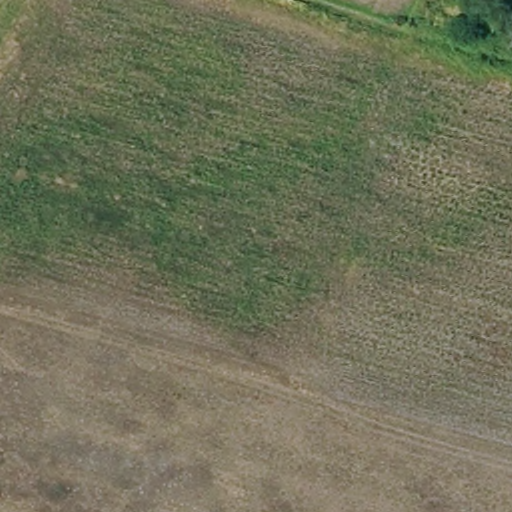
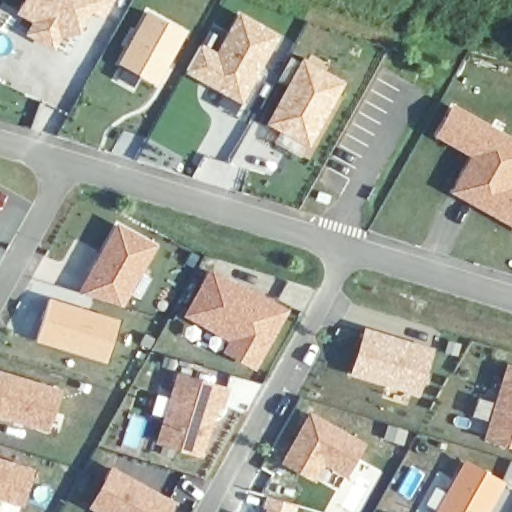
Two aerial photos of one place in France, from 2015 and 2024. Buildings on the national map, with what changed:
new [(113,0),(100,23),(90,16),(70,41),(65,38),(55,51),(22,34),(29,23),(14,12),(21,0),(113,0)]
new [(147,8),(188,31),(157,85),(116,63),(147,8)]
new [(211,28),(222,35),(239,10),(282,34),(242,106),(182,72),(211,28)]
new [(302,52),(346,81),(307,150),(263,124),(302,52)]
new [(452,102),(512,136),(512,227),(447,192),(467,156),(431,136),(452,102)]
new [(123,128),(145,139),(133,160),(110,151),(123,128)]
new [(202,154),(240,167),(232,191),(191,177),(202,154)]
new [(116,221),(159,245),(140,281),(147,286),(140,300),(131,295),(124,308),(76,291),(116,221)]
new [(249,285),(275,300),(287,279),(315,290),(302,313),(291,308),(291,309),(256,371),(220,351),(226,341),(181,315),(211,265),(249,285)]
new [(49,296),(120,320),(105,363),(35,341),(49,296)]
new [(363,325),(410,338),(436,348),(415,398),(347,376),(363,325)]
new [(175,370),(161,367),(165,356),(178,361),(175,370)]
new [(477,396),(492,401),(505,361),(512,363),(512,448),(481,439),(486,421),(470,416),(477,396)]
new [(46,432),(0,420),(0,370),(62,388),(46,432)]
new [(167,397),(175,370),(227,386),(230,376),(260,384),(245,414),(225,407),(203,459),(154,444),(161,417),(150,414),(156,393),(167,397)]
new [(308,410),(366,442),(345,478),(327,469),(319,484),(280,462),(308,410)]
new [(22,509),(0,501),(0,458),(35,468),(22,509)]
new [(433,483),(445,490),(464,458),(507,482),(490,512),(417,512),(415,511),(433,483)]
new [(111,465),(177,502),(171,512),(95,512),(86,507),(111,465)]
new [(266,495),(299,505),(298,512),(261,512),(266,495)]

